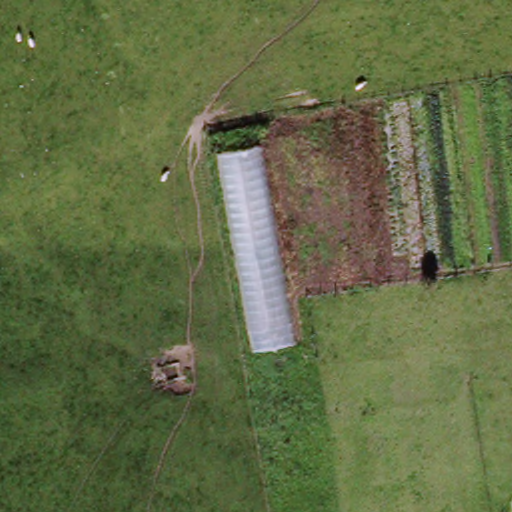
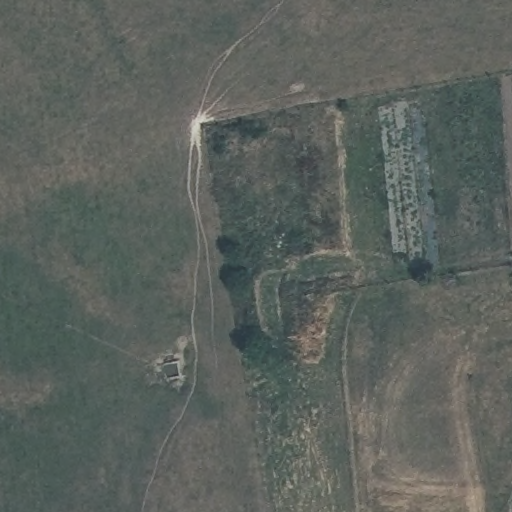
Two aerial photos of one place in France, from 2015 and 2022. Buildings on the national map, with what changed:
demolished [(258,136),(296,351),(253,359),(216,143),(258,136)]

